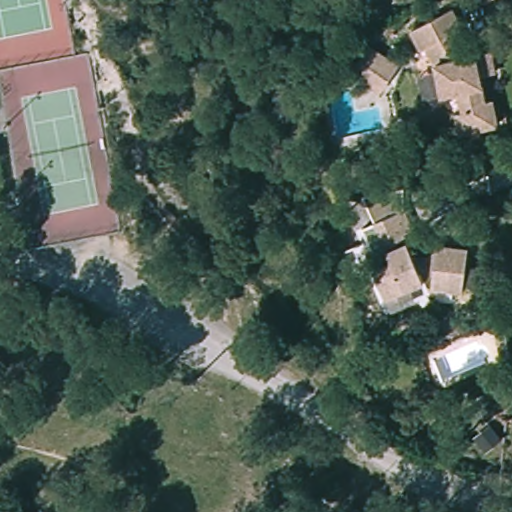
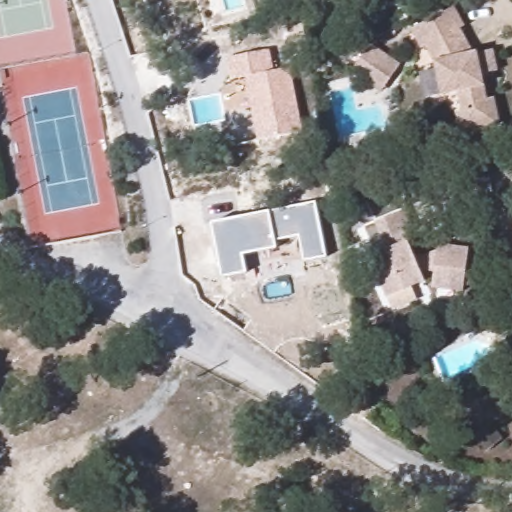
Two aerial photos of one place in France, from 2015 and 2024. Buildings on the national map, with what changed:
new [(485,0),(490,0),(486,2),(485,0)]
unchanged [(469,109),(477,107),(472,85),(455,87),(451,63),(441,39),(434,43),(424,25),(462,5),(472,24),(467,28),(481,54),(499,49),(504,71),(492,72),(496,96),(504,95),(510,126),(474,131),(469,109)]
new [(356,66),(365,52),(370,46),(400,66),(396,73),(386,87),(382,92),(368,83),(372,77),(356,66)]
new [(303,132),(258,141),(246,77),(232,80),(228,58),(271,50),(274,70),(290,68),(303,132)]
new [(316,202),(327,257),(304,261),(299,236),(277,241),(278,248),(243,256),(248,273),(224,278),(212,223),(270,210),(316,202)]
unchanged [(441,278),(428,277),(427,288),(392,300),(379,271),(394,266),(394,257),(391,256),(381,225),(407,213),(416,235),(411,238),(417,261),(440,262),(440,251),(471,252),(471,294),(441,291),(441,278)]
unchanged [(502,334),(512,331),(512,356),(506,357),(502,334)]

